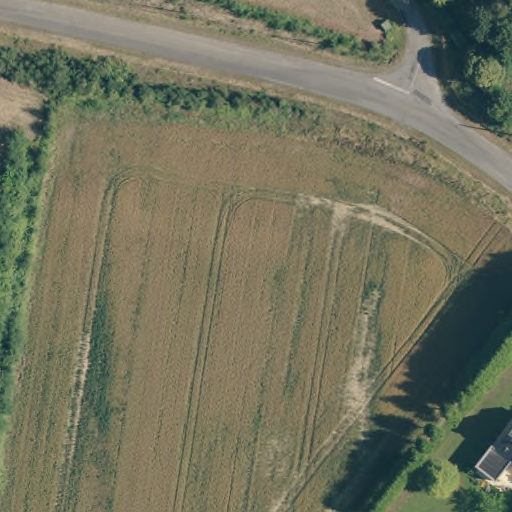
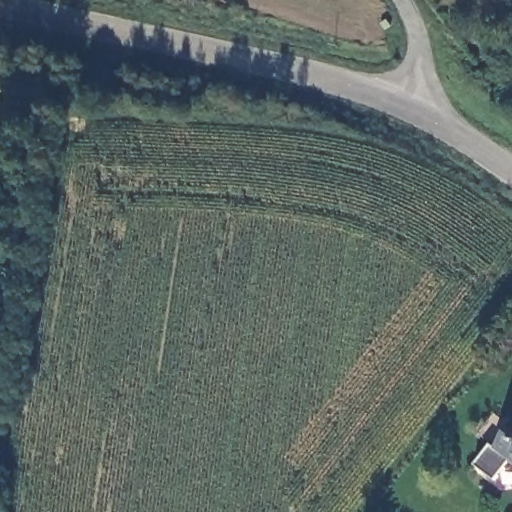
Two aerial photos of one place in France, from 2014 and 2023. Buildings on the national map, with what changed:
unchanged [(482,461),(499,441),(505,445),(512,437),(512,467),(503,478),(482,461)]

